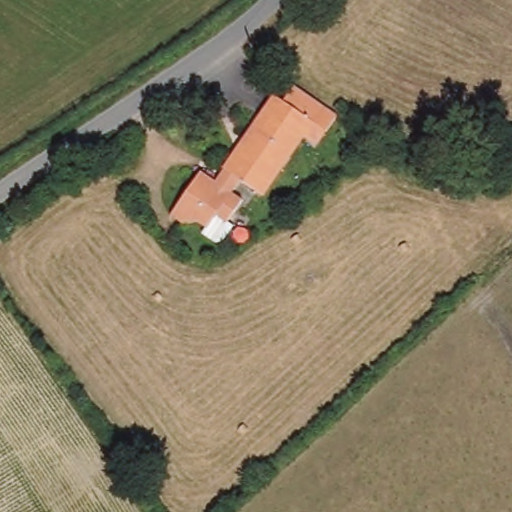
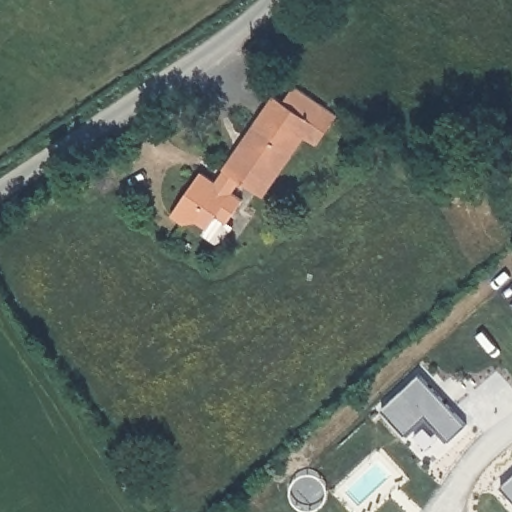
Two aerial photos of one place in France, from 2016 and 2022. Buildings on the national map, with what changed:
unchanged [(247,178),(239,191),(249,198),(234,221),(227,223),(214,227),(204,219),(188,221),(176,213),(199,180),(206,169),(221,179),(230,166),(280,93),(288,99),(300,82),(342,113),(332,129),(323,142),(310,133),(269,193),(247,178)]
new [(465,425),(450,439),(426,413),(405,432),(383,409),(419,375),(465,425)]
new [(512,475),(512,497),(500,485),(512,475)]

